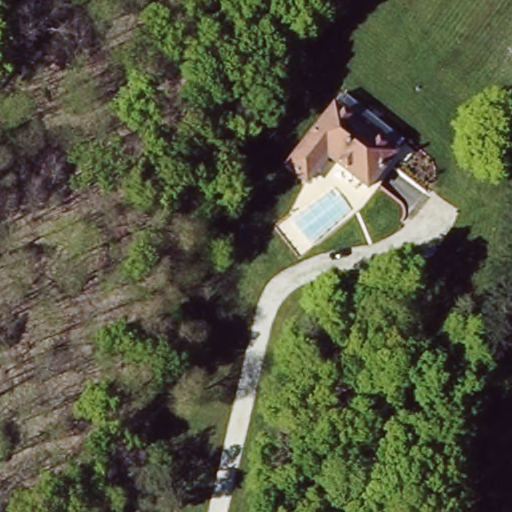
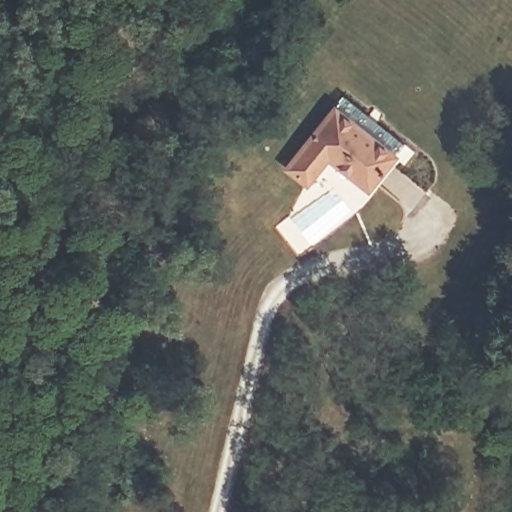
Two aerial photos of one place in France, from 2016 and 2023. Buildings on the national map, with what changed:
unchanged [(336,101),(399,155),(389,166),(327,112),(336,101)]
unchanged [(327,112),(389,166),(367,192),(327,157),(304,185),(280,164),(327,112)]

